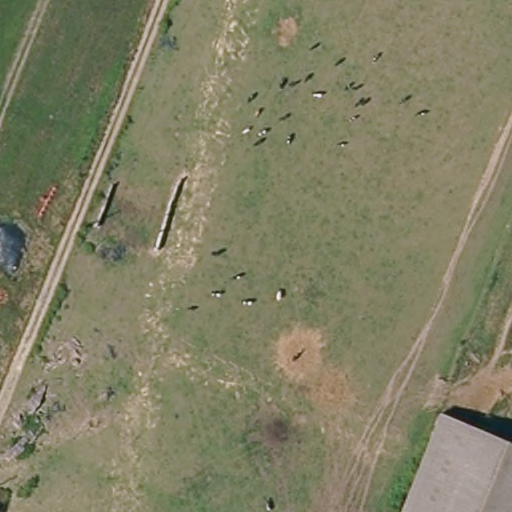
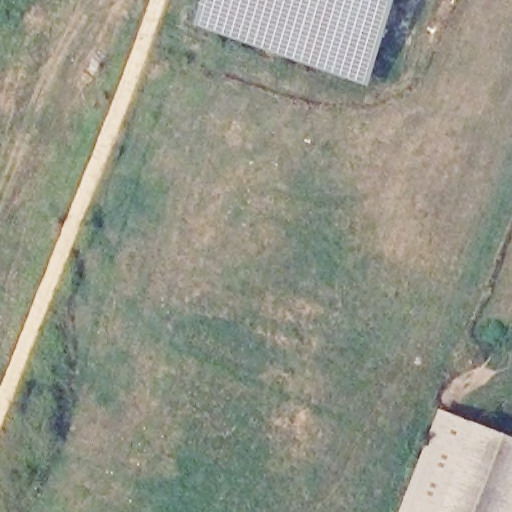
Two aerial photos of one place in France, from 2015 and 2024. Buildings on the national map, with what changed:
new [(371,90),(196,28),(206,0),(401,0),(371,90)]
unchanged [(399,512),(441,414),(512,442),(512,512),(399,512)]

